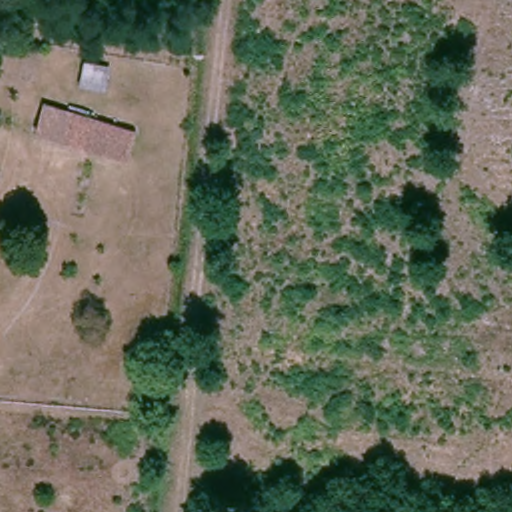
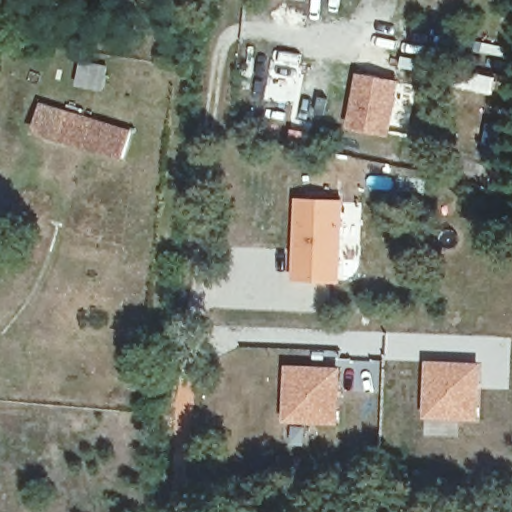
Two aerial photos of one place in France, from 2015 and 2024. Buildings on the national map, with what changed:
new [(357,72),(401,80),(391,136),(348,127),(357,72)]
unchanged [(121,159),(30,132),(38,102),(129,130),(121,159)]
new [(297,197),(343,199),(340,281),(295,280),(297,197)]
new [(427,358),(483,361),(481,422),(425,419),(427,358)]
new [(287,363),(342,366),(338,425),(306,423),(305,445),(288,443),(290,423),(285,422),(287,363)]

